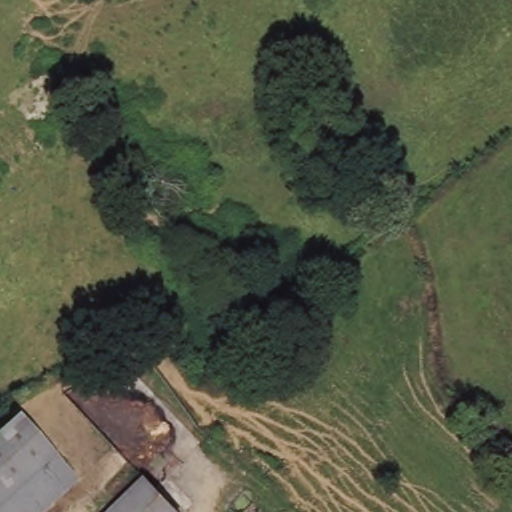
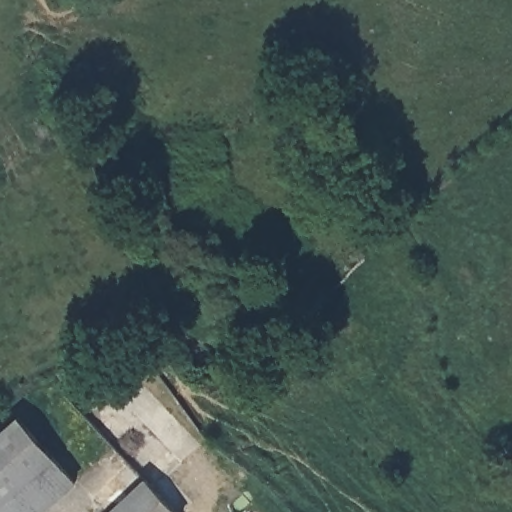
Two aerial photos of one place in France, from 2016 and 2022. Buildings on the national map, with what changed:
unchanged [(41,512),(0,512),(0,432),(19,416),(76,481),(41,512)]
unchanged [(148,480),(178,512),(114,512),(148,480)]

